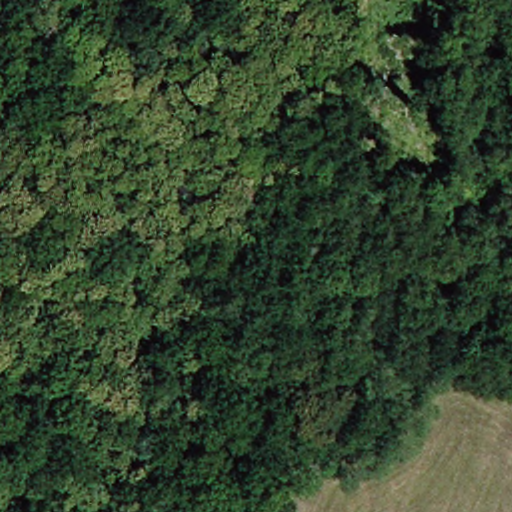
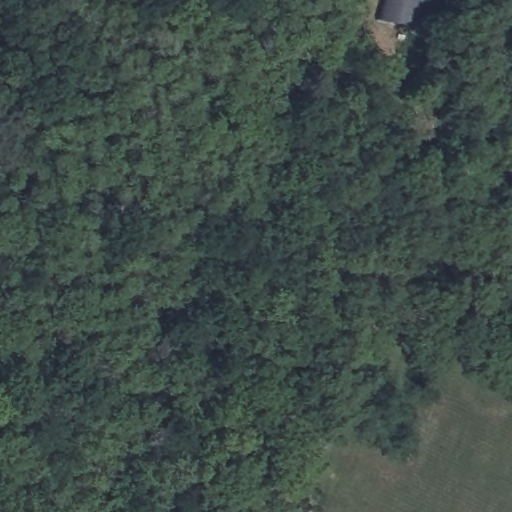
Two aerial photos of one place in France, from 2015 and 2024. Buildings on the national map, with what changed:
new [(386,0),(419,0),(411,27),(381,18),(386,0)]

